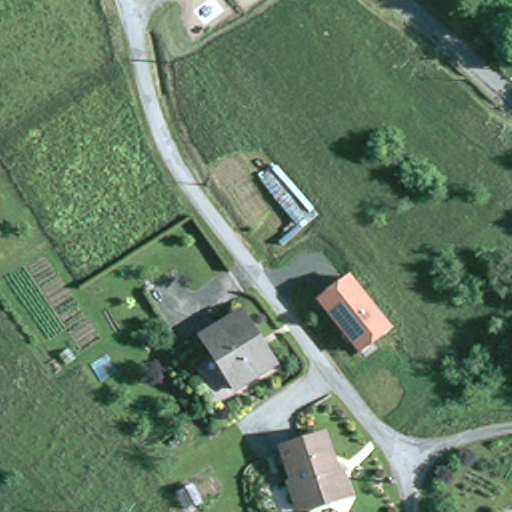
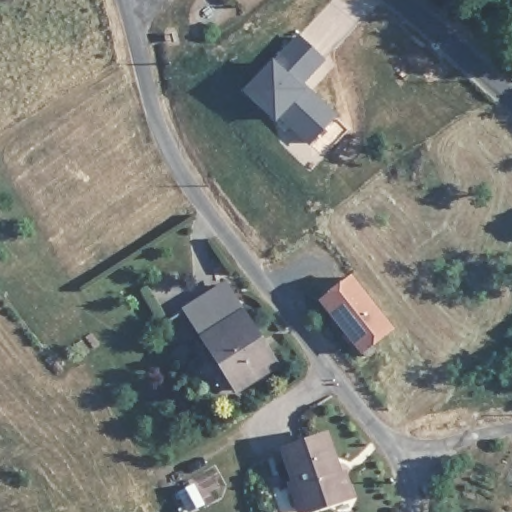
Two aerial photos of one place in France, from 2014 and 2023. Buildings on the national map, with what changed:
new [(272,63),(274,64),(299,36),(321,58),(297,86),(307,96),(310,92),(335,116),(309,144),(280,116),(276,120),(246,92),(272,63)]
unchanged [(388,342),(359,364),(319,310),(347,287),(388,342)]
unchanged [(274,357),(236,388),(198,338),(236,307),(274,357)]
unchanged [(283,450),(321,434),(335,474),(341,472),(350,496),(308,512),(298,512),(289,490),(297,486),(283,450)]

